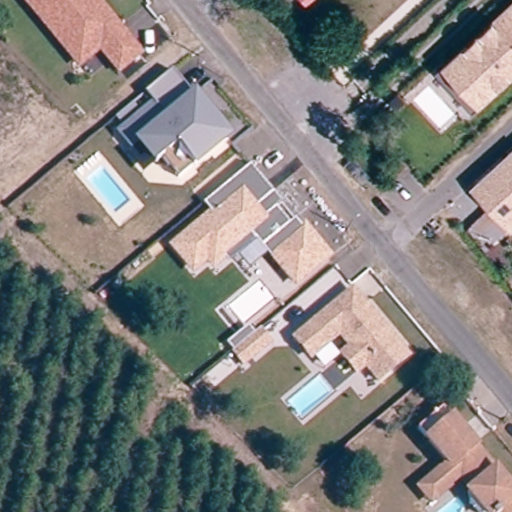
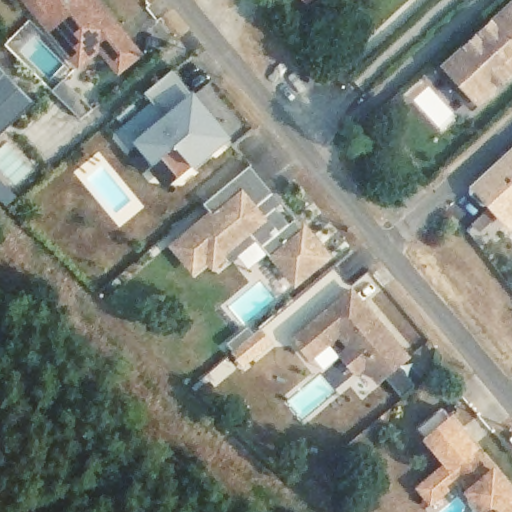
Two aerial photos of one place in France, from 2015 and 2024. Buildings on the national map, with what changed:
unchanged [(119,69),(102,50),(89,61),(82,67),(55,34),(26,0),(94,0),(106,14),(122,33),(138,52),(119,69)]
unchanged [(470,37),(486,23),(511,0),(512,0),(512,63),(511,63),(480,93),(473,98),(442,63),(453,53),(470,37)]
new [(34,102),(0,134),(0,67),(34,102)]
unchanged [(196,96),(212,115),(230,136),(180,176),(165,156),(158,161),(141,141),(135,146),(123,131),(156,103),(146,92),(174,69),(196,96)]
unchanged [(398,93),(400,92),(406,99),(397,108),(390,101),(398,93)]
unchanged [(208,211),(202,204),(250,165),(281,202),(275,208),(289,223),(294,218),(300,226),(305,222),(332,256),(296,288),(267,253),(249,269),(239,257),(231,264),(227,258),(214,271),(207,264),(194,275),(168,245),(208,211)]
unchanged [(475,187),(490,173),(501,184),(512,174),(512,226),(503,216),(475,187)]
unchanged [(356,287),(367,301),(388,327),(396,336),(410,353),(382,377),(369,362),(360,369),(345,351),(355,344),(343,330),(315,354),(299,335),(339,301),(356,287)]
unchanged [(241,344),(261,327),(271,340),(250,359),(245,363),(234,350),(241,344)]
unchanged [(492,512),(488,512),(480,510),(469,501),(466,491),(468,489),(458,476),(429,500),(417,485),(445,461),(423,435),(448,414),(479,452),(490,465),(512,492),(512,512),(496,512),(495,510),(492,512)]

